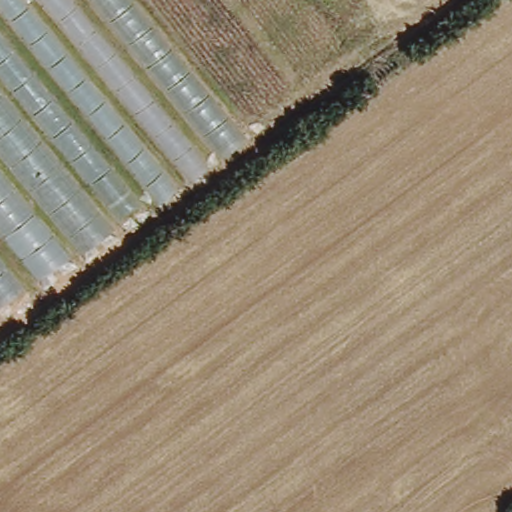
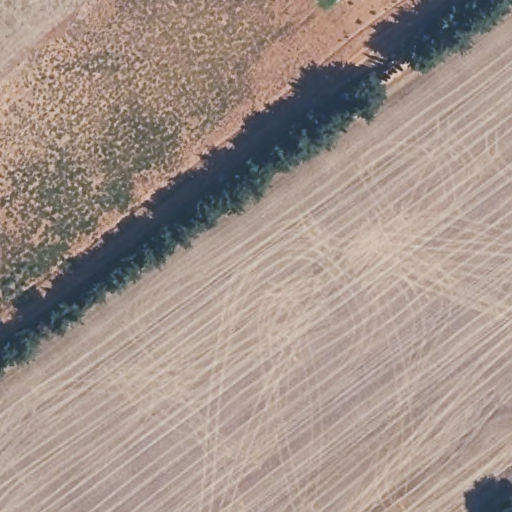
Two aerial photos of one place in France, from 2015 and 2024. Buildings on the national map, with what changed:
demolished [(0,323),(0,0),(139,0),(257,132),(0,323)]

